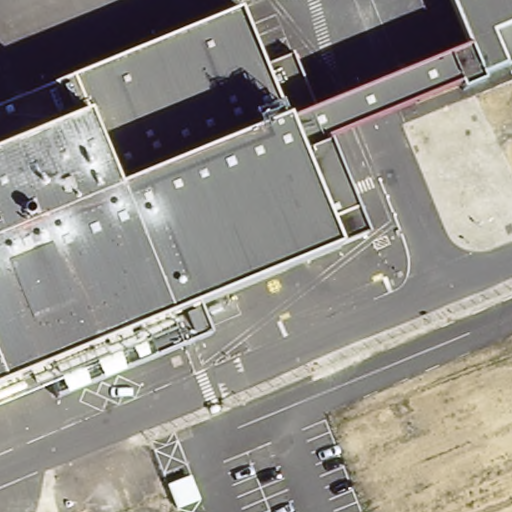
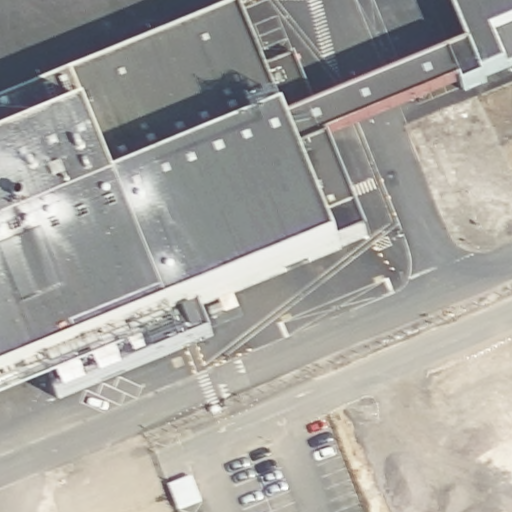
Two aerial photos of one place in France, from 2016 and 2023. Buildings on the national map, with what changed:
unchanged [(331,139),(372,236),(334,245),(228,293),(231,330),(58,400),(49,366),(0,386),(0,105),(236,7),(286,115),(470,44),(452,0),(512,0),(512,64),(509,65),(331,139)]

